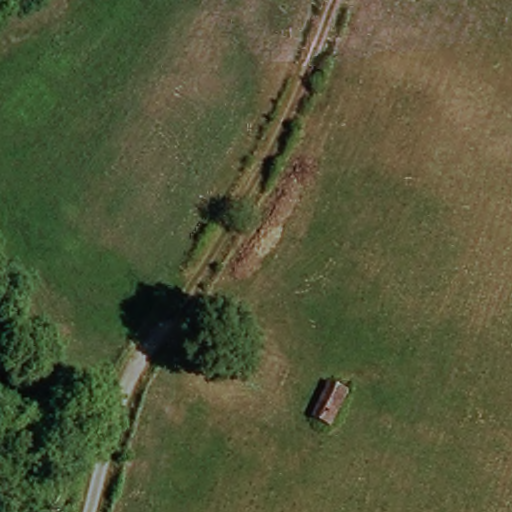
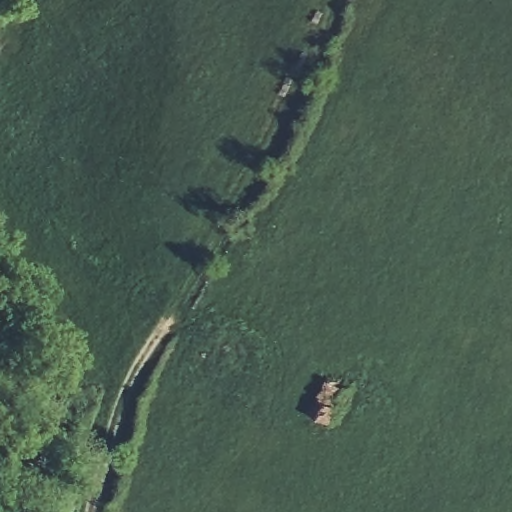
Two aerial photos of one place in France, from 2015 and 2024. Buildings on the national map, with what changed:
unchanged [(314,416),(330,378),(349,386),(334,423),(314,416)]

